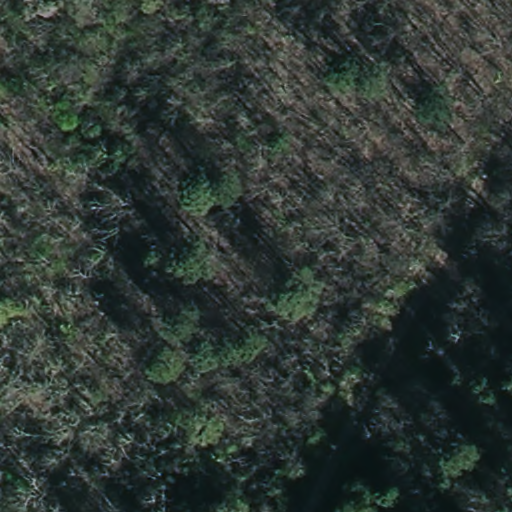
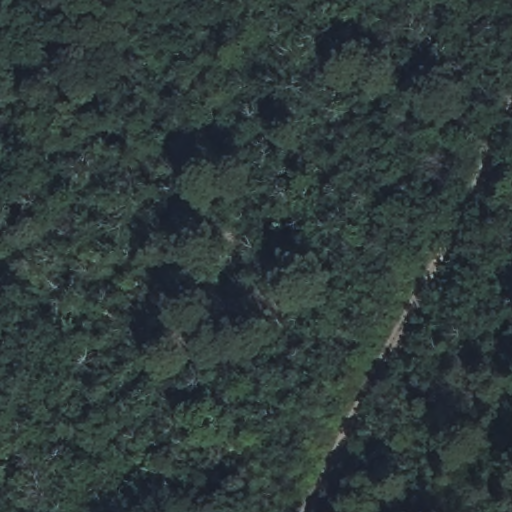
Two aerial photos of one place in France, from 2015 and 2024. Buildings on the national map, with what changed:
[]

